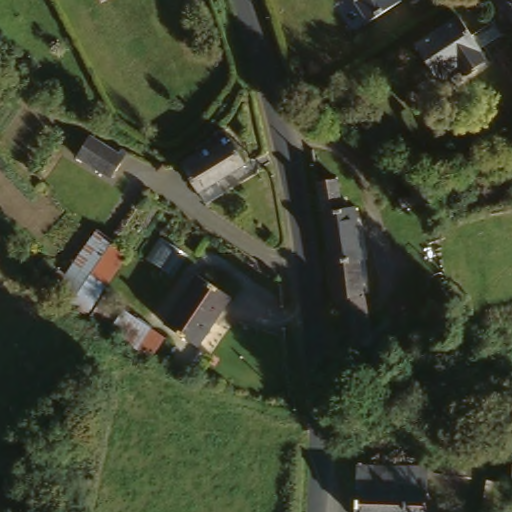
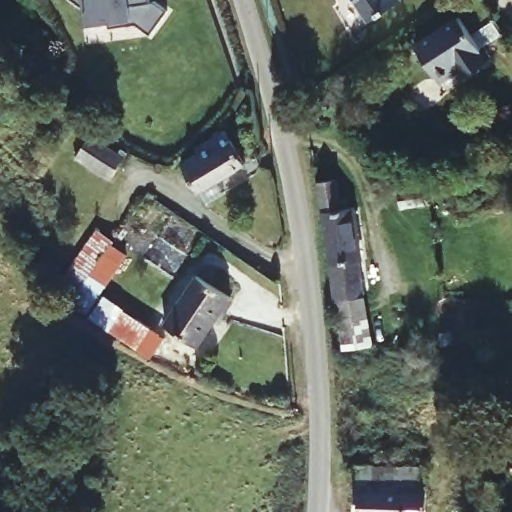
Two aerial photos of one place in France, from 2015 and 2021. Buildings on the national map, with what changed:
new [(108,29),(106,21),(84,25),(82,6),(72,0),(149,0),(149,2),(166,14),(151,36),(136,25),(108,29)]
unchanged [(364,26),(347,0),(393,0),(395,3),(364,26)]
unchanged [(496,38),(474,52),(478,59),(454,73),(449,66),(431,77),(408,42),(453,16),(466,39),(491,26),(496,38)]
unchanged [(309,127),(301,101),(318,94),(326,120),(309,127)]
unchanged [(180,161),(193,158),(191,150),(227,138),(238,176),(199,189),(187,193),(183,178),(180,161)]
unchanged [(122,162),(110,181),(73,156),(86,139),(122,162)]
unchanged [(409,206),(406,186),(421,182),(427,203),(409,206)]
unchanged [(328,188),(332,207),(341,205),(353,274),(348,274),(353,298),(329,304),(308,192),(328,188)]
unchanged [(48,270),(59,278),(88,231),(123,259),(95,301),(162,340),(146,365),(78,324),(36,288),(48,270)]
unchanged [(191,278),(228,306),(226,308),(196,351),(161,325),(184,288),(191,278)]
unchanged [(353,298),(363,353),(336,360),(326,304),(329,304),(353,298)]
unchanged [(512,485),(504,484),(512,458),(512,485)]
unchanged [(419,475),(415,512),(350,512),(354,469),(419,475)]
unchanged [(496,512),(468,512),(473,484),(498,490),(496,512)]

